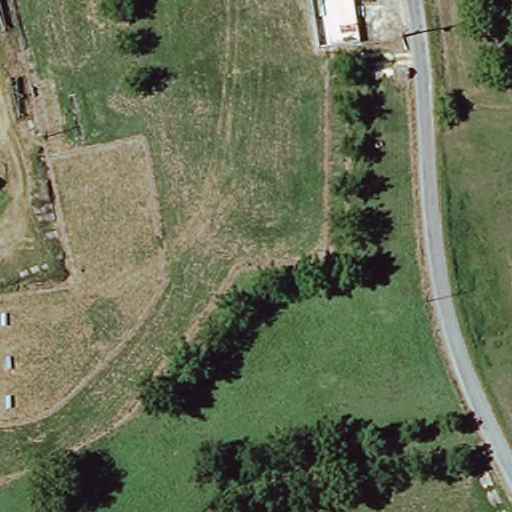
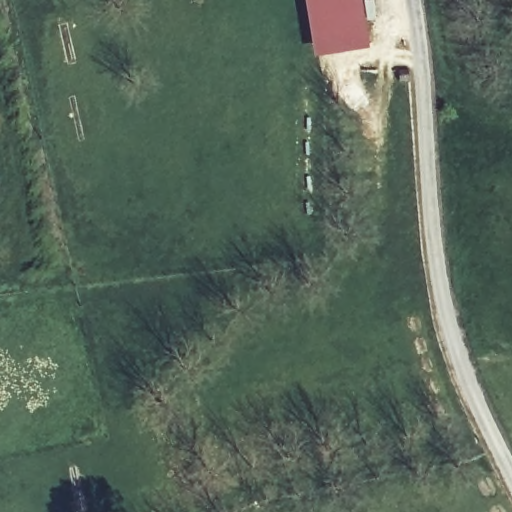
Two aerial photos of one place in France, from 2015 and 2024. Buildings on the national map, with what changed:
new [(368,47),(311,57),(302,0),(361,0),(368,47)]

